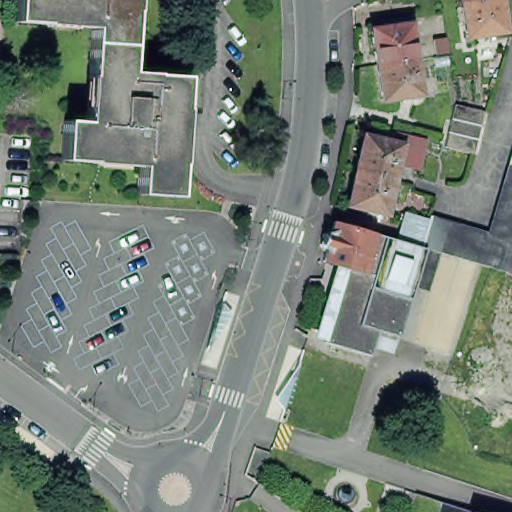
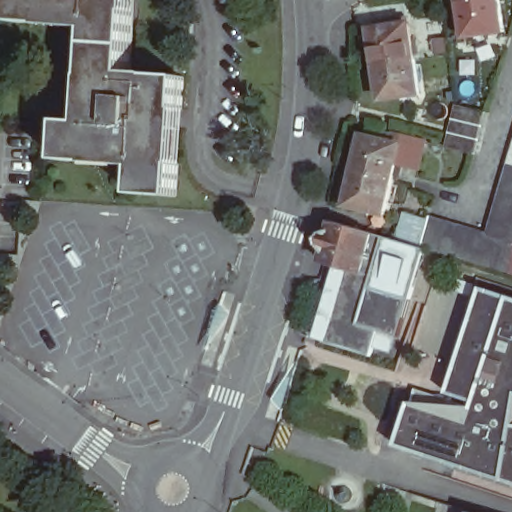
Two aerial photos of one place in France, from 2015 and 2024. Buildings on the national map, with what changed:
unchanged [(94,26),(16,21),(17,0),(134,0),(132,45),(93,42),(94,26)]
unchanged [(466,6),(464,0),(503,0),(466,6)]
unchanged [(508,34),(471,40),(466,6),(503,0),(508,34)]
unchanged [(377,30),(413,25),(418,59),(382,64),(377,30)]
unchanged [(140,194),(141,162),(64,159),(66,120),(88,120),(93,42),(132,45),(131,72),(186,75),(179,196),(140,194)]
unchanged [(418,59),(423,94),(387,99),(382,64),(418,59)]
unchanged [(478,153),(449,146),(452,132),(455,119),(458,104),(459,104),(460,105),(488,111),(485,126),(484,130),(482,140),(478,153)]
unchanged [(385,147),(387,135),(418,142),(411,172),(389,167),(385,184),(349,176),(358,141),(385,147)]
unchanged [(432,214),(485,227),(512,145),(512,273),(423,246),(432,214)]
unchanged [(385,184),(378,217),(341,209),(349,176),(385,184)]
unchanged [(337,267),(323,262),(326,249),(320,247),(324,231),(331,232),(333,222),(423,246),(394,354),(375,346),(373,357),(314,337),(337,267)]
new [(396,444),(415,387),(473,406),(480,385),(453,376),(483,285),(512,295),(512,482),(396,444)]
demolished [(511,376),(496,371),(505,337),(512,339),(512,392),(507,391),(511,376)]

